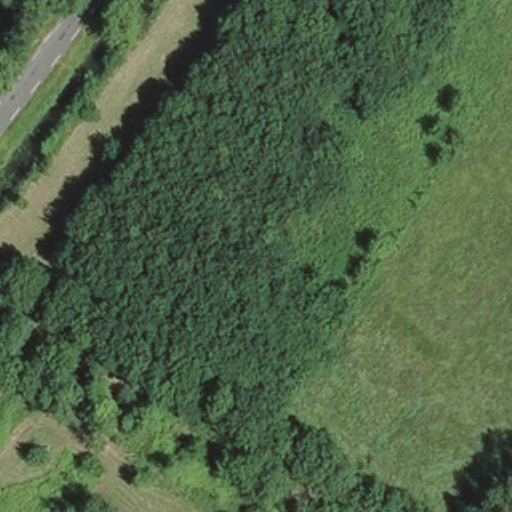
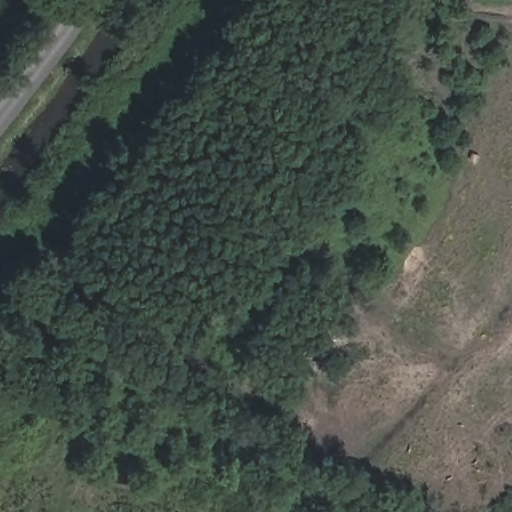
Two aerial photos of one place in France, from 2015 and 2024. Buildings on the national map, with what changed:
[]

